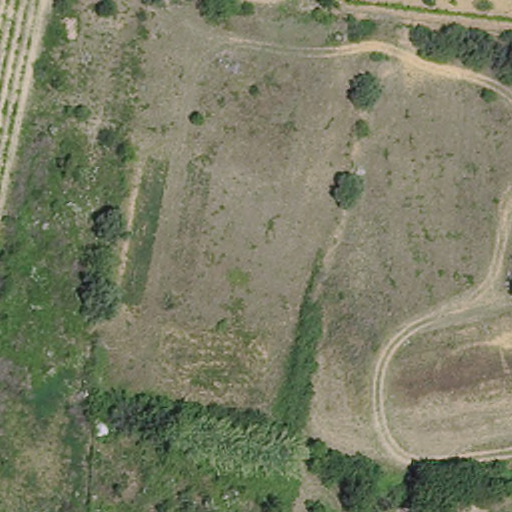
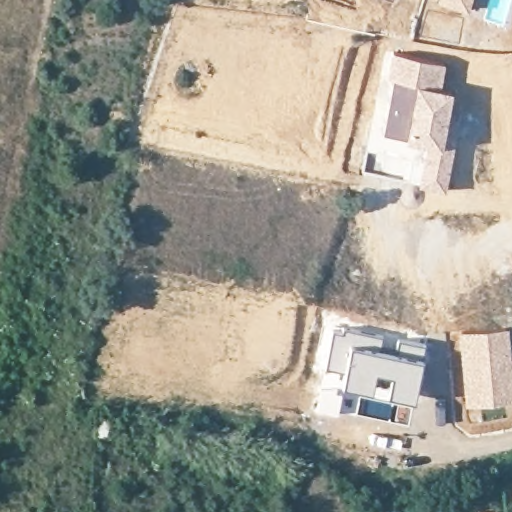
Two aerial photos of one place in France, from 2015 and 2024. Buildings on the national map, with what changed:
new [(332,0),(357,0),(355,7),(332,0)]
new [(439,0),(471,0),(468,9),(439,0)]
new [(387,106),(392,80),(386,78),(391,53),(446,64),(442,87),(454,90),(443,143),(455,145),(446,190),(420,184),(427,145),(382,134),(387,106)]
new [(512,352),(512,401),(466,405),(459,331),(508,326),(512,352)]
new [(380,350),(397,353),(400,339),(426,344),(423,358),(415,398),(389,393),(392,374),(377,371),(373,391),(343,386),(346,372),(327,368),(334,331),(344,333),(345,327),(382,335),(380,350)]
new [(321,387),(339,389),(336,414),(317,411),(321,387)]
unchanged [(110,438),(95,435),(95,418),(113,419),(110,438)]

